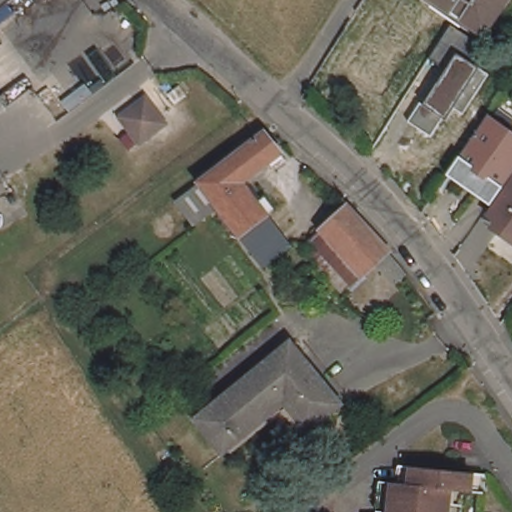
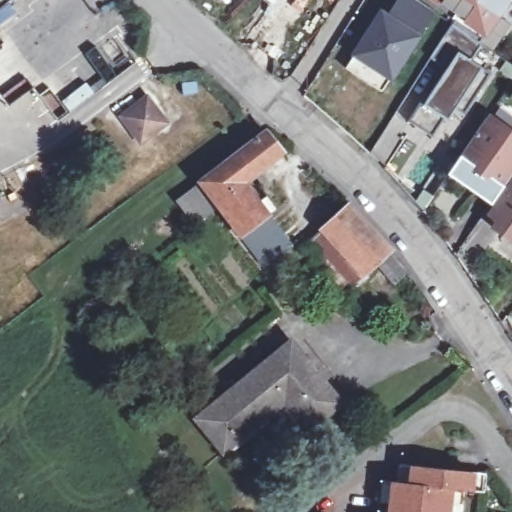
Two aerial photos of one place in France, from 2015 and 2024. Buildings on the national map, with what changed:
new [(376,22),(382,13),(390,19),(392,20),(405,0),(418,0),(435,11),(407,55),(398,50),(390,63),(398,68),(382,93),(355,75),(346,69),(355,55),(376,22)]
unchanged [(435,0),(508,0),(485,34),(435,0)]
unchanged [(455,107),(446,119),(442,117),(430,134),(411,122),(423,102),(427,104),(449,70),(432,59),(453,24),(483,45),(472,62),(490,74),(475,96),(463,113),(455,107)]
unchanged [(141,143),(122,119),(139,106),(146,101),(151,109),(164,125),(141,143)]
unchanged [(512,135),(512,168),(497,188),(454,156),(482,114),(512,135)]
unchanged [(177,196),(202,178),(267,129),(282,149),(242,179),(268,212),(243,231),(220,202),(196,221),(177,196)]
unchanged [(512,242),(500,233),(505,226),(492,217),(512,188),(512,242)]
unchanged [(355,212),(391,250),(364,277),(350,261),(322,232),(350,207),(355,212)]
unchanged [(243,231),(268,212),(292,243),(267,262),(243,231)]
unchanged [(341,404),(310,429),(287,402),(225,452),(197,419),(292,342),(341,404)]
unchanged [(475,490),(455,488),(452,512),(382,512),(368,510),(372,479),(388,481),(391,464),(477,473),(475,490)]

